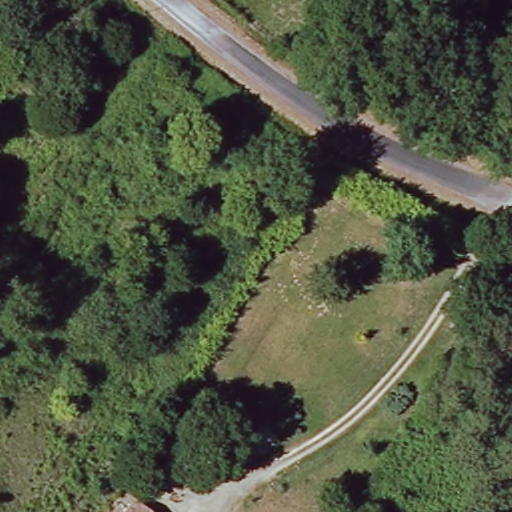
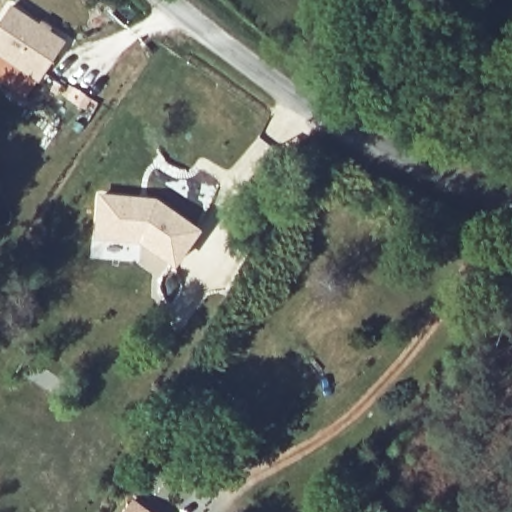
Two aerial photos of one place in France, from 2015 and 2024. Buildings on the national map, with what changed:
new [(64,41),(38,81),(35,80),(24,97),(0,81),(0,21),(11,5),(64,41)]
new [(96,191),(156,197),(202,229),(173,269),(140,247),(91,242),(96,191)]
unchanged [(146,512),(130,512),(135,505),(146,512)]

